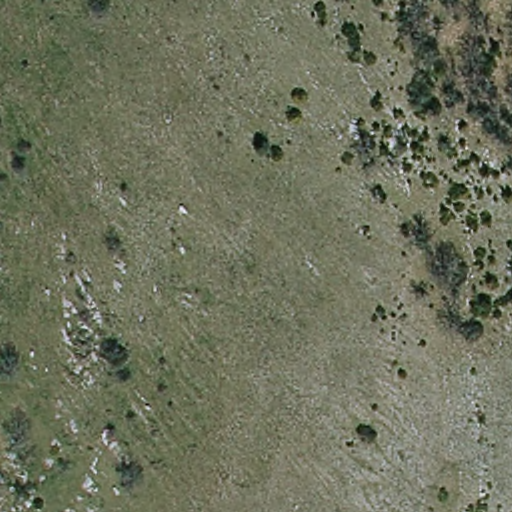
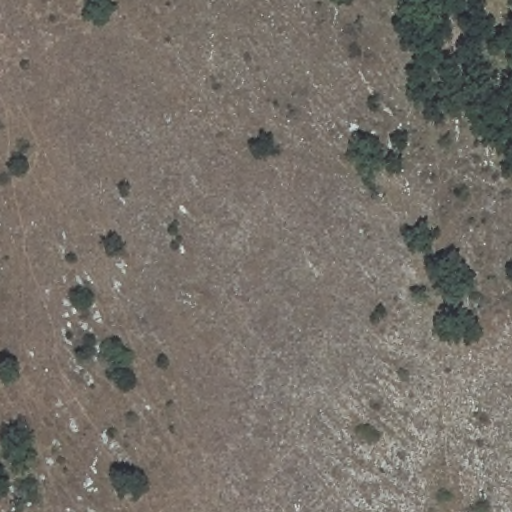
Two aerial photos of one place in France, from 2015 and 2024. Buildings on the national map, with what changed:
[]

